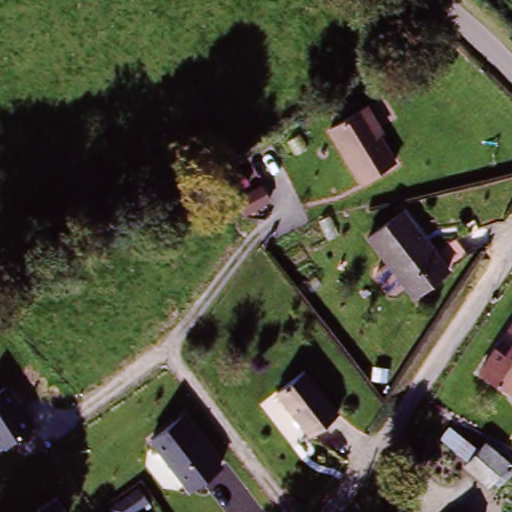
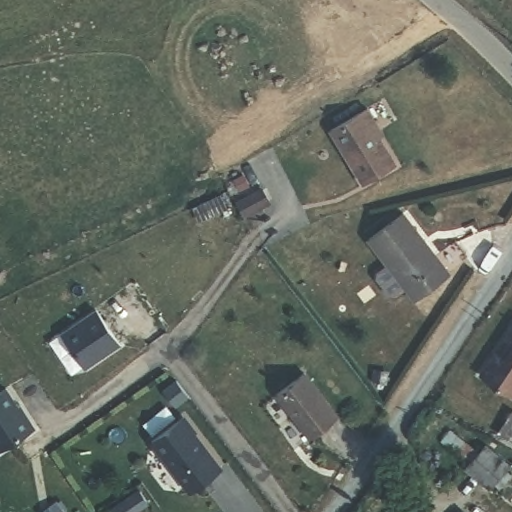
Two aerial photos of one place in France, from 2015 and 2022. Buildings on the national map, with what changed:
unchanged [(366,98),(380,113),(374,117),(403,155),(373,178),(333,124),(366,98)]
unchanged [(262,204),(252,210),(241,191),(251,186),(262,204)]
unchanged [(416,295),(370,235),(403,210),(450,269),(416,295)]
new [(94,314),(117,347),(83,371),(60,337),(94,314)]
unchanged [(477,378),(500,342),(511,327),(512,328),(512,389),(508,396),(477,378)]
unchanged [(311,434),(279,388),(306,368),(339,414),(311,434)]
unchanged [(5,390),(32,432),(0,450),(0,393),(5,390)]
unchanged [(150,443),(183,417),(221,469),(189,494),(150,443)]
unchanged [(474,470),(492,452),(512,469),(512,474),(496,491),(474,470)]

